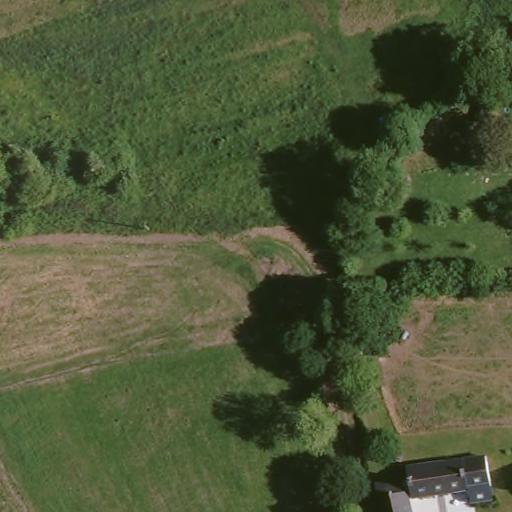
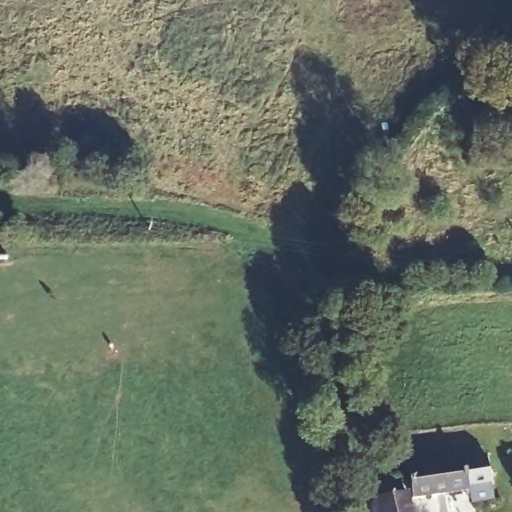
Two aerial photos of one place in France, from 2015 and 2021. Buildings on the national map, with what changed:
unchanged [(491,492),(413,501),(409,471),(432,468),(486,460),(491,492)]
unchanged [(395,488),(399,503),(405,501),(408,512),(379,512),(374,492),(395,488)]

